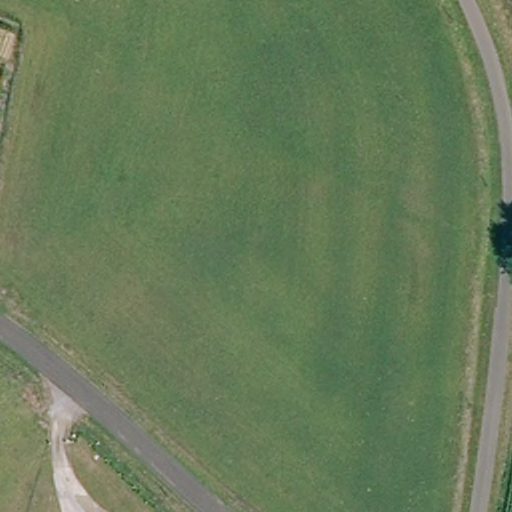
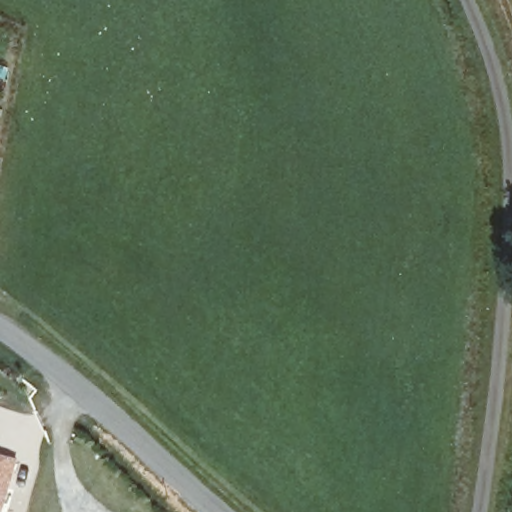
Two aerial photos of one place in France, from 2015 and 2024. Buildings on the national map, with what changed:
new [(0,512),(0,456),(19,461),(4,512),(0,512)]

